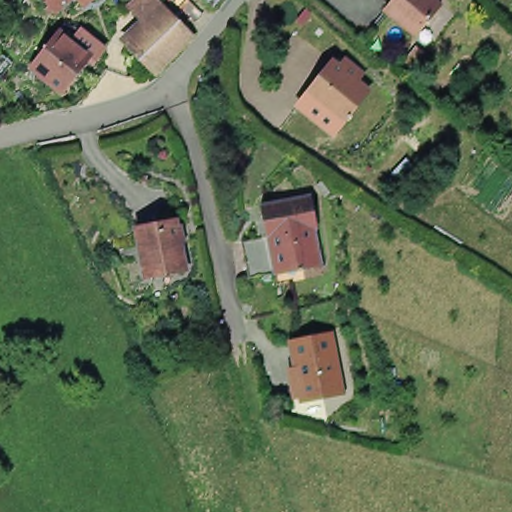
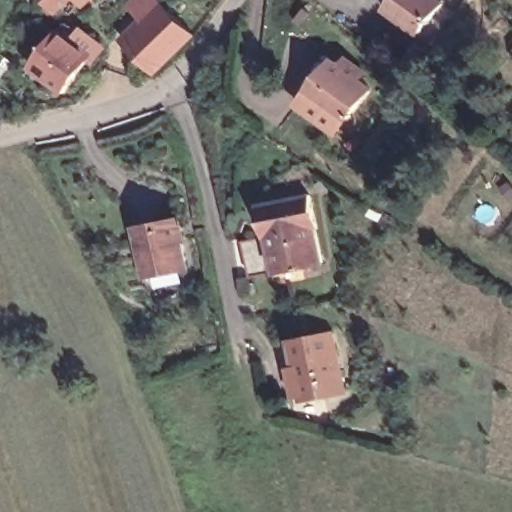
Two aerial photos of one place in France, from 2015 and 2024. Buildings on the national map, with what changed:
unchanged [(62,0),(54,7),(48,0),(62,0)]
unchanged [(165,4),(150,17),(133,0),(177,0),(170,8),(165,4)]
unchanged [(386,7),(391,0),(440,0),(419,31),(386,7)]
unchanged [(194,32),(152,69),(123,41),(150,17),(165,4),(170,8),(194,32)]
unchanged [(421,36),(411,50),(402,44),(412,29),(421,36)]
unchanged [(35,67),(62,32),(95,57),(67,92),(35,67)]
unchanged [(337,53),(349,61),(353,54),(368,64),(363,71),(375,79),(352,112),(344,125),(306,100),(315,87),(337,53)]
unchanged [(247,227),(270,222),(265,201),(315,191),(321,222),(318,222),(326,261),(303,266),(303,264),(279,269),(277,257),(254,262),(247,227)]
unchanged [(177,216),(186,265),(148,272),(138,224),(177,216)]
unchanged [(306,395),(294,338),(336,329),(348,385),(306,395)]

